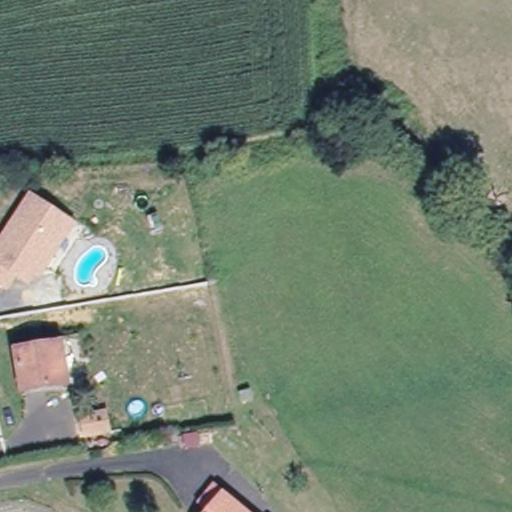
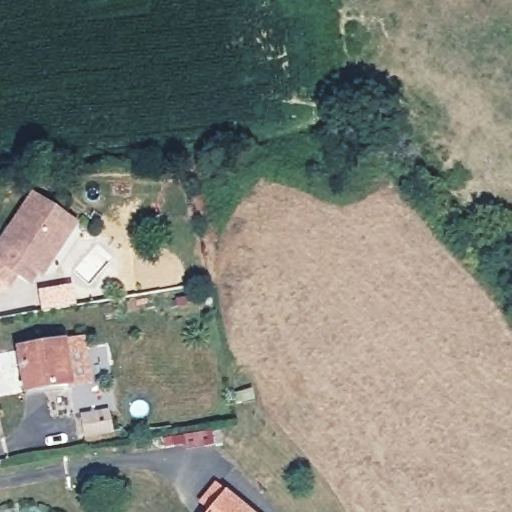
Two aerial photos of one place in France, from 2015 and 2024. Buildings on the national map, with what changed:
unchanged [(61,214),(75,222),(56,252),(47,266),(39,267),(30,280),(17,271),(9,285),(0,280),(0,244),(32,194),(61,214)]
unchanged [(66,342),(75,381),(30,391),(22,351),(66,342)]
unchanged [(110,416),(114,440),(87,445),(84,421),(110,416)]
unchanged [(245,512),(214,512),(210,508),(220,497),(225,493),(245,512)]

